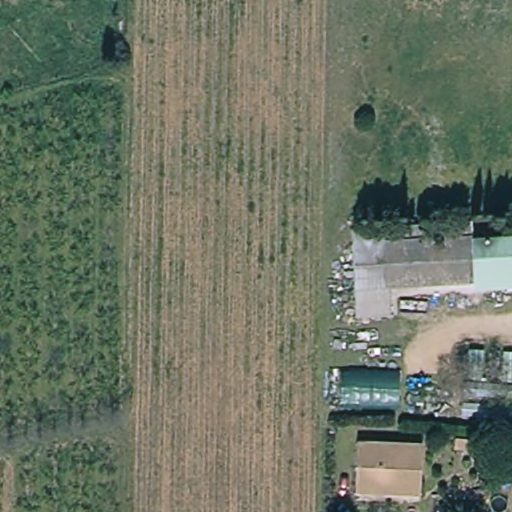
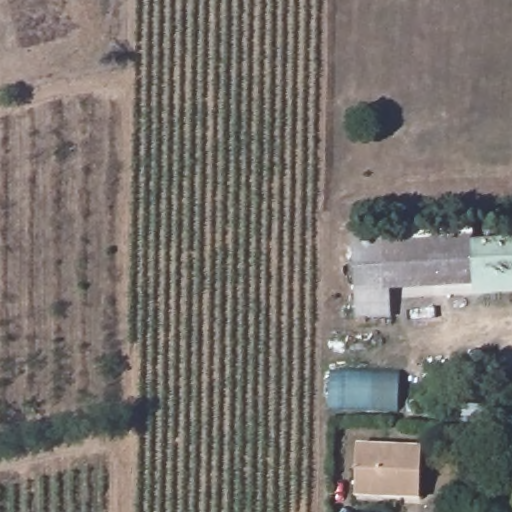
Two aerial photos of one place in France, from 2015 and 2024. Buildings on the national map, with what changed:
unchanged [(476,225),(477,245),(512,243),(512,283),(388,289),(386,229),(476,225)]
unchanged [(354,231),(386,229),(388,289),(358,290),(354,231)]
unchanged [(329,408),(331,372),(404,374),(401,409),(329,408)]
unchanged [(357,495),(358,443),(426,444),(425,496),(357,495)]

